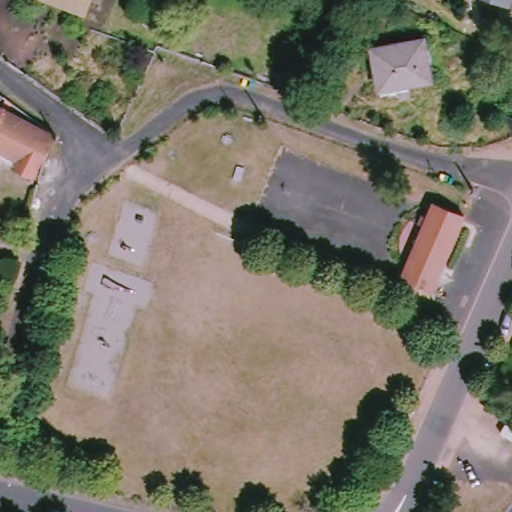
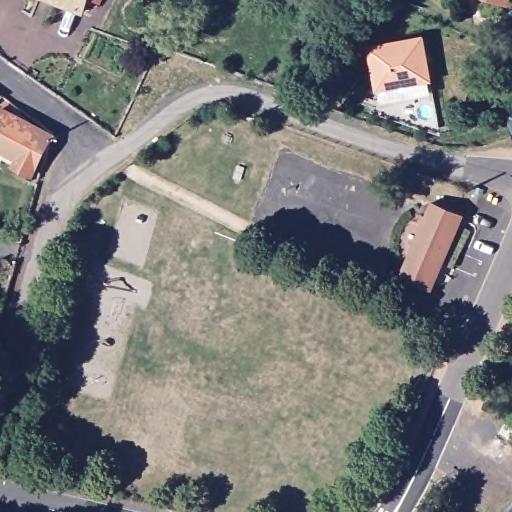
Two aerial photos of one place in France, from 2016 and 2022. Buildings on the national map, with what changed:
unchanged [(47,0),(90,0),(85,15),(47,0)]
unchanged [(488,0),(509,0),(507,6),(488,0)]
unchanged [(376,90),(369,49),(422,39),(430,80),(376,90)]
unchanged [(55,136),(33,180),(11,171),(16,161),(0,153),(0,105),(55,136)]
unchanged [(512,111),(512,129),(506,114),(512,111)]
unchanged [(432,290),(403,277),(434,204),(462,216),(432,290)]
unchanged [(506,426),(507,424),(512,427),(512,439),(502,433),(506,426)]

